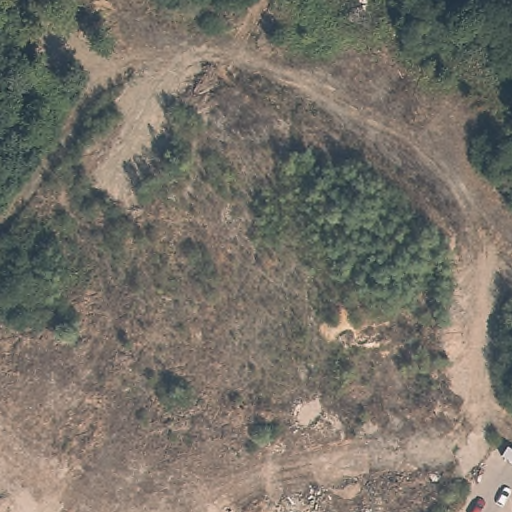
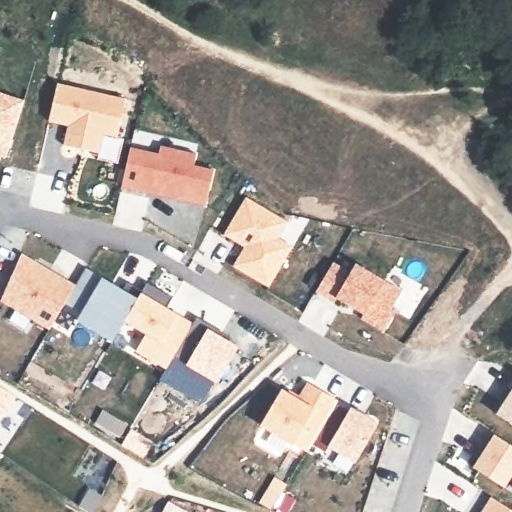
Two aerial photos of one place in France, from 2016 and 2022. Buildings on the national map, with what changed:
new [(57,84),(126,99),(117,137),(103,134),(98,153),(64,145),(68,126),(49,122),(57,84)]
new [(24,101),(6,158),(0,156),(0,93),(24,101)]
new [(159,154),(160,146),(196,154),(194,166),(214,170),(206,206),(160,195),(161,191),(153,189),(152,194),(136,190),(145,151),(159,154)]
new [(288,222),(278,238),(292,247),(269,287),(233,266),(247,244),(241,240),(239,244),(224,235),(246,198),(288,222)]
new [(38,263),(36,266),(43,271),(45,268),(75,286),(50,329),(1,301),(22,254),(38,263)]
new [(333,263),(350,273),(355,264),(402,291),(391,311),(395,313),(384,332),(316,292),(333,263)]
new [(86,268),(123,290),(127,282),(142,291),(112,342),(78,320),(82,313),(65,304),(86,268)]
new [(142,291),(147,283),(173,298),(166,308),(176,314),(193,324),(173,356),(167,369),(136,352),(145,335),(124,321),(142,291)]
new [(212,326),(209,331),(238,348),(218,382),(173,356),(197,317),(212,326)]
new [(512,382),(512,390),(508,387),(512,382)]
new [(261,425),(281,390),(298,400),(308,383),(338,401),(307,452),(261,425)]
new [(14,396),(5,409),(0,418),(0,386),(14,396)]
new [(512,424),(496,414),(512,391),(512,424)]
new [(378,424),(355,462),(329,446),(351,408),(378,424)]
new [(512,446),(512,476),(504,487),(473,467),(494,435),(512,446)]
new [(280,496),(271,511),(259,504),(268,489),(280,496)]
new [(491,497),(512,510),(512,512),(482,512),(491,497)]

